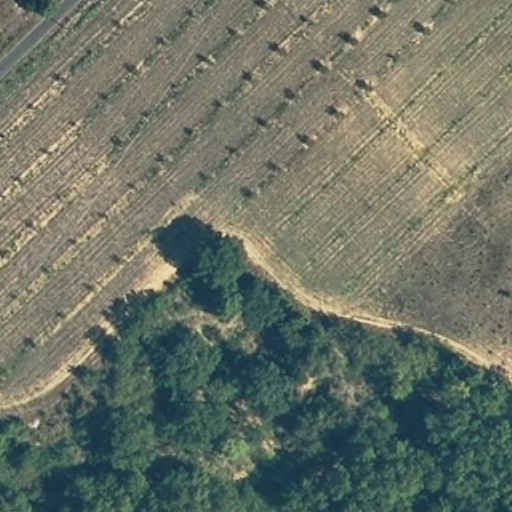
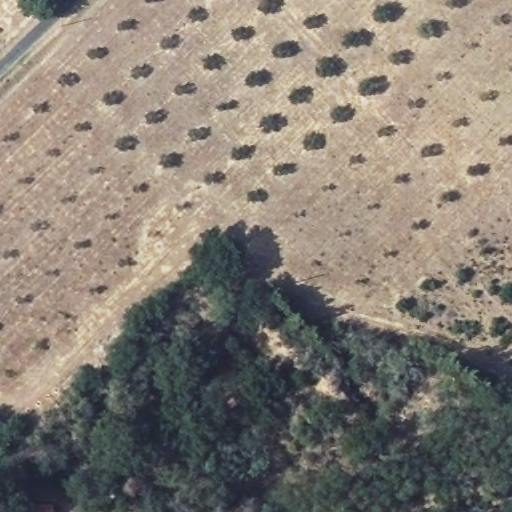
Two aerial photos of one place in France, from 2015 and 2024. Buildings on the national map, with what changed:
unchanged [(51,512),(21,512),(21,504),(51,506),(51,512)]

